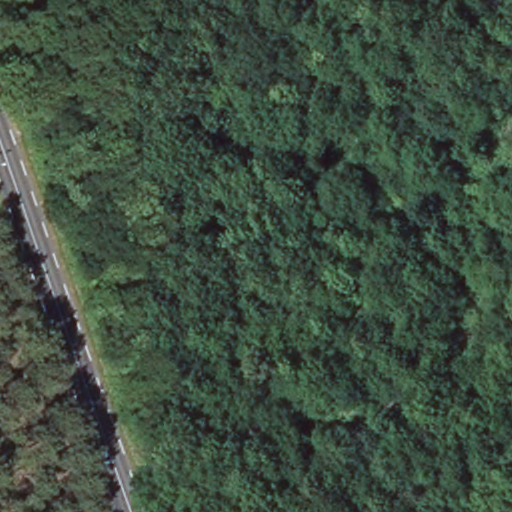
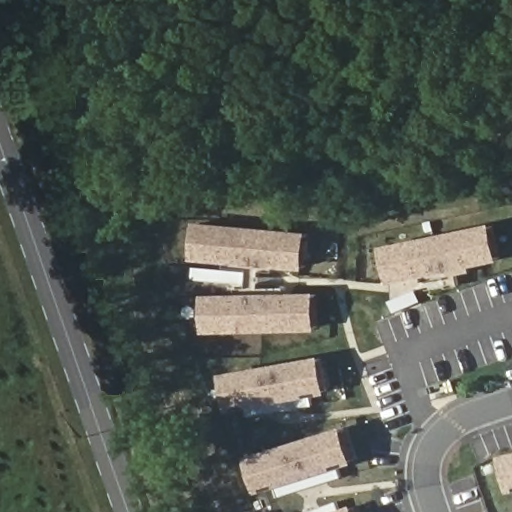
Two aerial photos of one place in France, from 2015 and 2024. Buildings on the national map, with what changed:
new [(309,270),(226,259),(205,256),(195,255),(199,217),(210,218),(314,231),(325,232),(320,270),(309,270)]
new [(383,241),(393,240),(483,221),(493,220),(501,257),(491,260),(420,274),(400,278),(390,280),(383,241)]
new [(276,265),(275,271),(248,268),(226,265),(226,259),(276,265)]
new [(470,264),(471,271),(421,280),(420,274),(470,264)]
new [(246,283),(193,277),(194,266),(248,272),(246,283)]
new [(236,287),(246,287),(248,268),(263,270),(261,287),(287,287),(286,292),(237,292),(236,287)]
new [(460,284),(448,286),(446,275),(457,274),(460,284)]
new [(448,285),(425,290),(423,280),(446,275),(448,285)]
new [(395,312),(389,301),(416,288),(421,299),(395,312)]
new [(317,331),(306,331),(219,330),(209,330),(209,291),(219,291),(306,292),(317,292),(317,331)]
new [(223,374),(230,372),(315,357),(322,356),(328,390),(322,391),(246,405),(237,407),(230,408),(223,374)]
new [(249,416),(246,405),(311,394),(313,405),(249,416)]
new [(248,454),(254,451),(336,425),(343,423),(355,460),(348,461),(276,485),(266,488),(259,490),(248,454)]
new [(512,456),(512,494),(510,495),(500,458),(507,457),(512,456)]
new [(280,497),(276,485),(339,465),(343,476),(280,497)]
new [(300,512),(338,499),(341,510),(334,512),(300,512)]
new [(355,505),(357,512),(333,512),(348,507),(355,505)]

